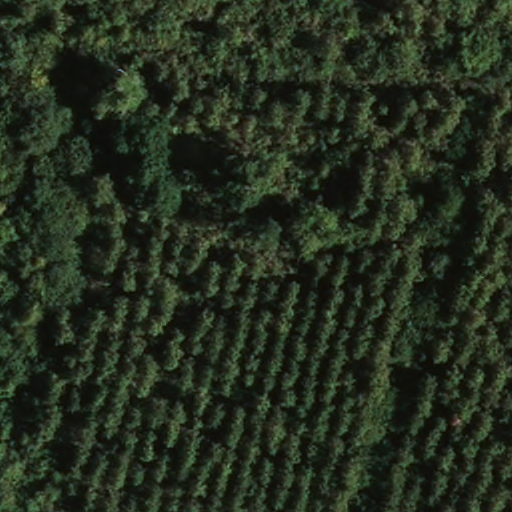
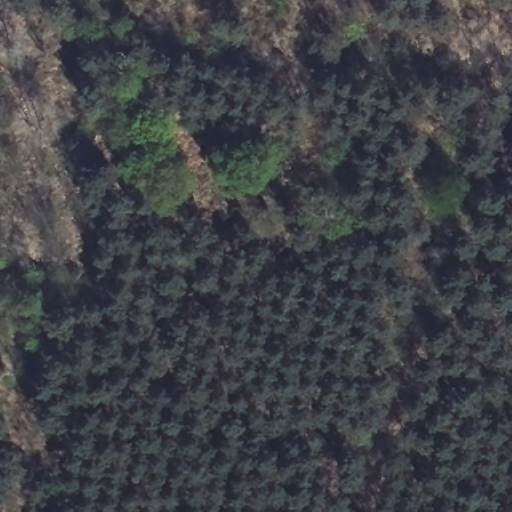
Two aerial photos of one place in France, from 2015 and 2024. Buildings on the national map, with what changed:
[]

